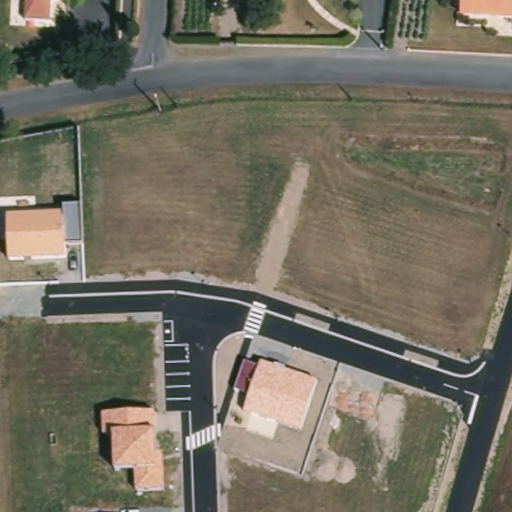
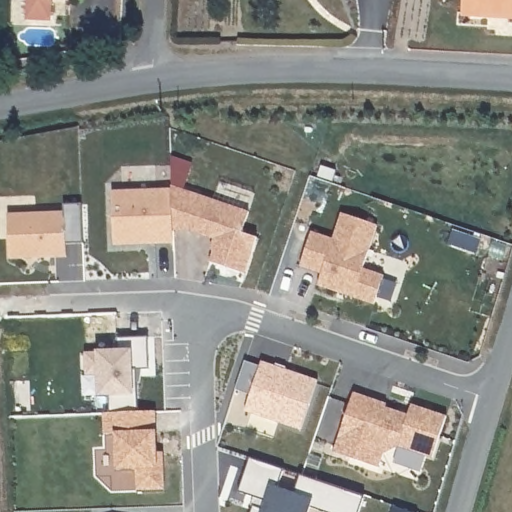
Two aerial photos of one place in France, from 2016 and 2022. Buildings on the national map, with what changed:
unchanged [(29,0),(71,0),(71,2),(29,0)]
unchanged [(462,0),(512,0),(512,22),(461,20),(462,0)]
new [(172,188),(172,185),(248,211),(241,231),(256,236),(244,272),(209,261),(212,250),(211,249),(214,238),(191,230),(172,230),(172,243),(112,245),(112,190),(172,188)]
unchanged [(10,258),(7,214),(64,213),(64,205),(81,205),(82,245),(65,246),(65,258),(10,258)]
new [(376,225),(361,269),(382,275),(372,304),(317,285),(321,274),(300,267),(311,232),(332,239),(341,214),(376,225)]
new [(134,369),(136,412),(109,413),(109,396),(97,396),(96,375),(85,376),(84,352),(95,351),(119,349),(119,338),(146,337),(147,368),(134,369)]
unchanged [(245,410),(250,395),(236,390),(246,361),(260,367),(261,362),(317,382),(301,430),(245,410)]
new [(386,403),(385,408),(408,415),(411,405),(443,415),(432,457),(397,445),(382,455),(379,466),(333,451),(353,392),(386,403)]
unchanged [(136,490),(137,469),(116,470),(115,433),(104,435),(103,413),(156,412),(157,432),(157,454),(164,454),(166,489),(136,490)]
new [(325,512),(310,507),(308,512),(250,512),(252,507),(255,496),(239,491),(250,459),(282,469),(277,487),(295,493),(300,476),(363,498),(359,512),(325,512)]

